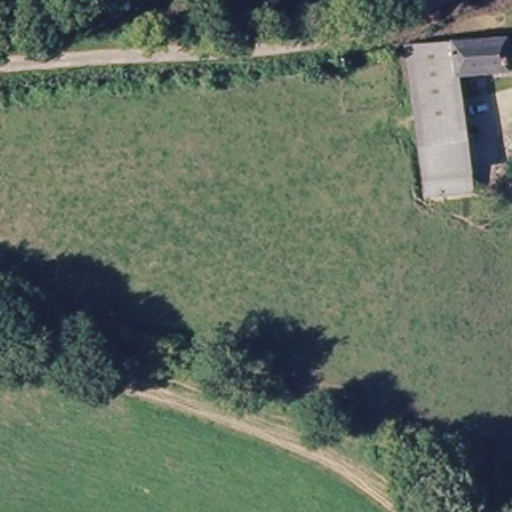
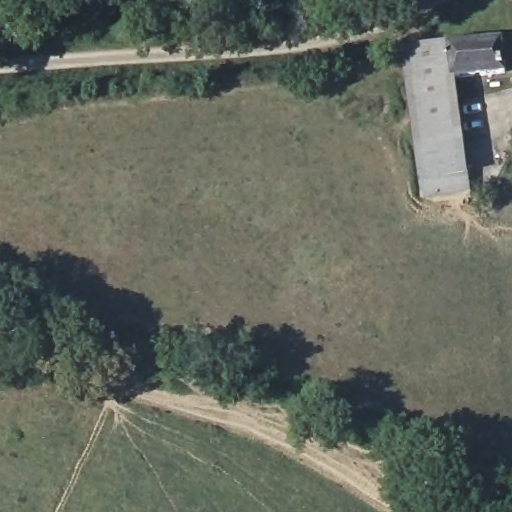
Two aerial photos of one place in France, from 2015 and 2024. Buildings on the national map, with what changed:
unchanged [(504,31),(512,62),(512,80),(463,88),(477,188),(423,196),(400,44),(504,31)]

